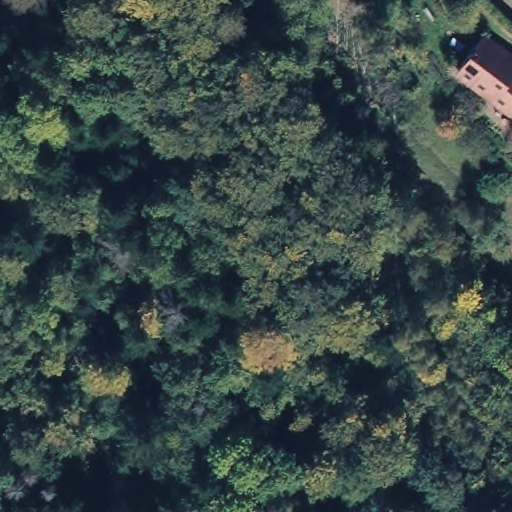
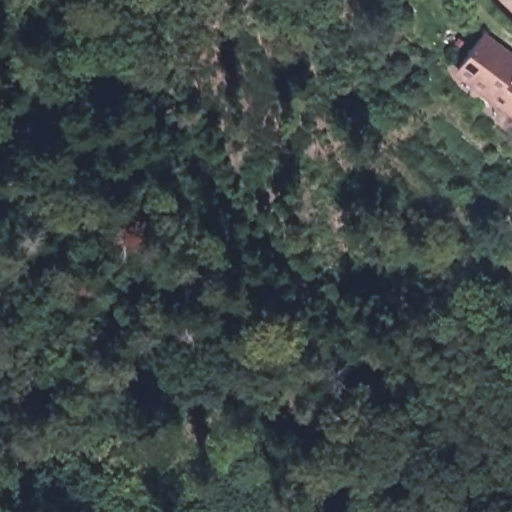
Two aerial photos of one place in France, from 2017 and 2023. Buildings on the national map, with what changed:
unchanged [(512,62),(512,124),(511,125),(450,76),(478,37),(512,62)]

